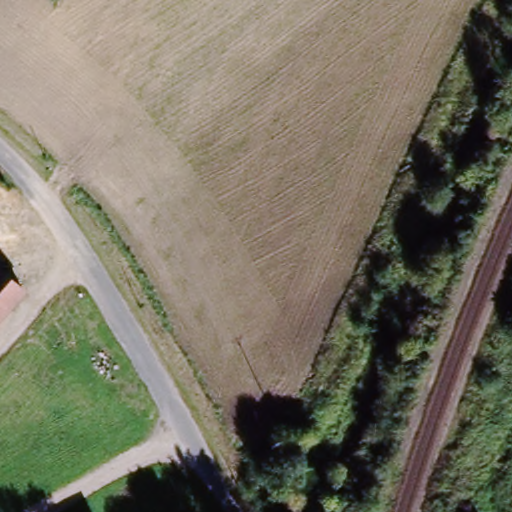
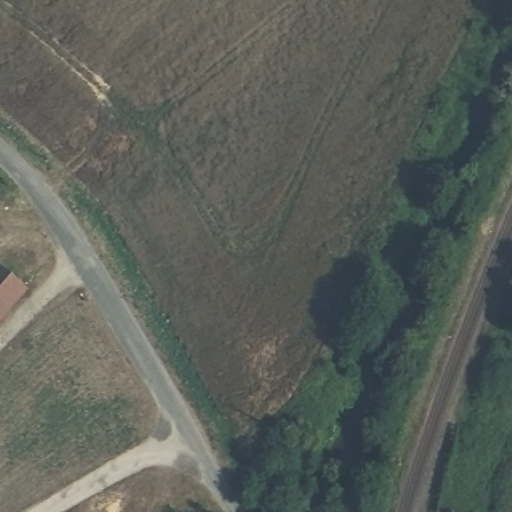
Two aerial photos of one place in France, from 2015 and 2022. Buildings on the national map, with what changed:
unchanged [(23,287),(0,315),(0,267),(23,287)]

